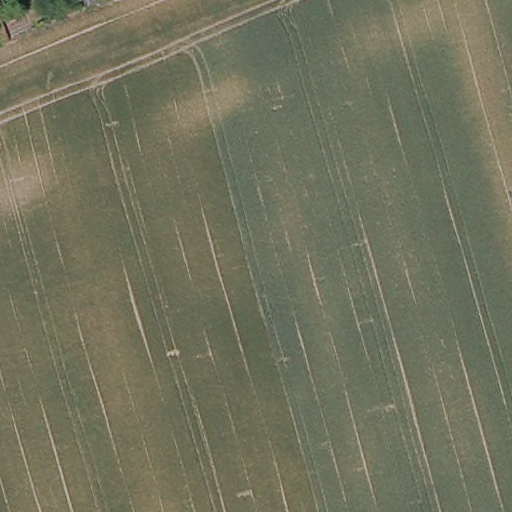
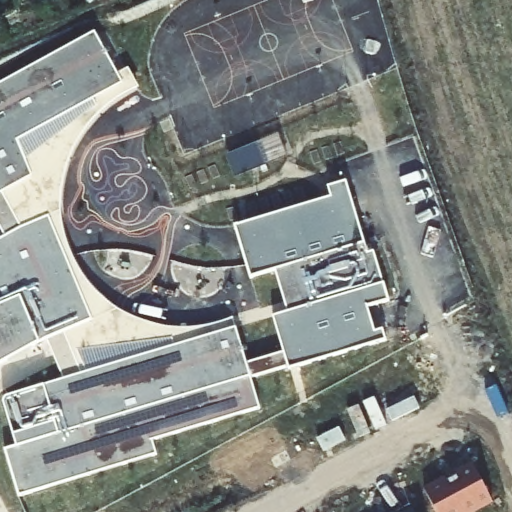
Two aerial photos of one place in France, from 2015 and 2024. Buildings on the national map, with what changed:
new [(128,92),(99,113),(77,141),(63,182),(64,223),(80,271),(112,304),(142,321),(173,328),(208,327),(234,321),(247,363),(286,355),(274,317),(288,313),(276,271),(250,277),(235,227),(331,197),(330,187),(345,182),(367,255),(375,252),(388,300),(368,308),(376,332),(382,330),(387,342),(288,371),(287,366),(251,378),(261,408),(152,441),(156,455),(19,497),(5,450),(16,446),(2,401),(5,397),(64,381),(46,338),(0,363),(0,242),(6,239),(0,228),(0,83),(94,31),(128,92)]
new [(491,503),(475,512),(434,512),(422,492),(471,466),(491,503)]
new [(413,512),(399,512),(410,506),(413,512)]

